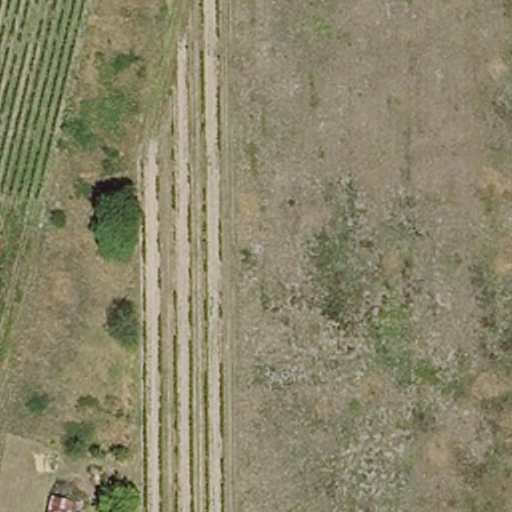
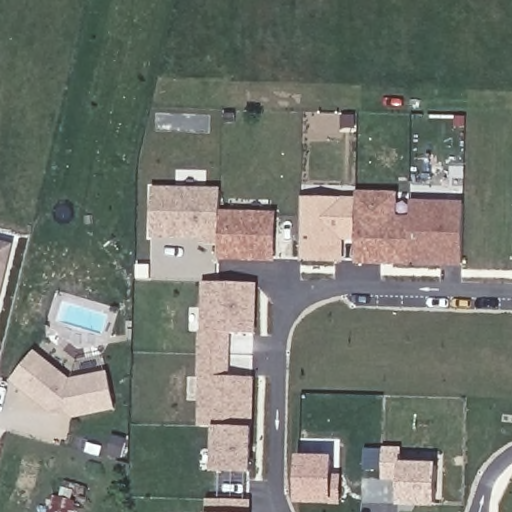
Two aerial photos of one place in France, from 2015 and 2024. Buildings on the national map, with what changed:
new [(151,189),(220,190),(220,212),(220,240),(202,240),(202,235),(150,234),(151,189)]
new [(355,237),(356,201),(356,194),(395,195),(395,219),(410,219),(410,262),(355,262),(355,237)]
new [(301,200),(356,201),(355,237),(340,237),(340,262),(301,260),(301,200)]
new [(467,203),(466,263),(413,262),(414,202),(467,203)]
new [(220,240),(220,212),(273,213),(273,257),(220,256),(220,240)]
new [(0,305),(0,242),(14,245),(0,305)]
new [(202,427),(202,378),(200,378),(201,332),(204,332),(205,283),(255,284),(254,335),(228,334),(227,377),(252,377),(251,428),(202,427)]
new [(32,352),(69,381),(106,375),(112,411),(69,418),(50,412),(9,380),(32,352)]
new [(251,428),(250,472),(216,471),(217,427),(251,428)]
new [(401,450),(401,465),(438,466),(437,503),(399,503),(400,478),(382,477),(383,451),(401,450)]
new [(327,460),(327,479),(335,478),(335,502),(295,502),(296,460),(327,460)]
unchanged [(53,496),(72,501),(69,512),(49,512),(53,496)]
new [(211,500),(250,501),(250,512),(211,512),(211,500)]

